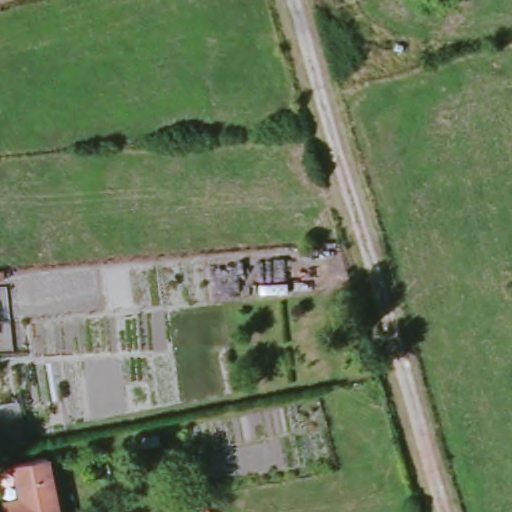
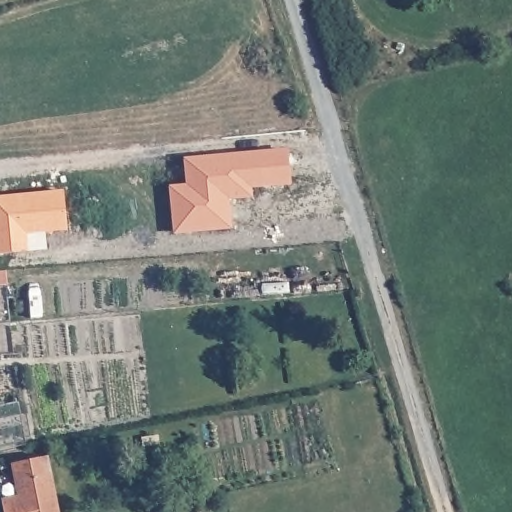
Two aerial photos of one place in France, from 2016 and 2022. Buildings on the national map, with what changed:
new [(291,189),(253,192),(253,199),(233,201),(233,227),(174,236),(168,186),(186,186),(186,153),(289,148),(291,189)]
new [(24,234),(24,253),(0,253),(0,191),(64,188),(68,229),(24,234)]
unchanged [(6,464),(41,456),(55,512),(0,512),(0,498),(12,494),(6,464)]

